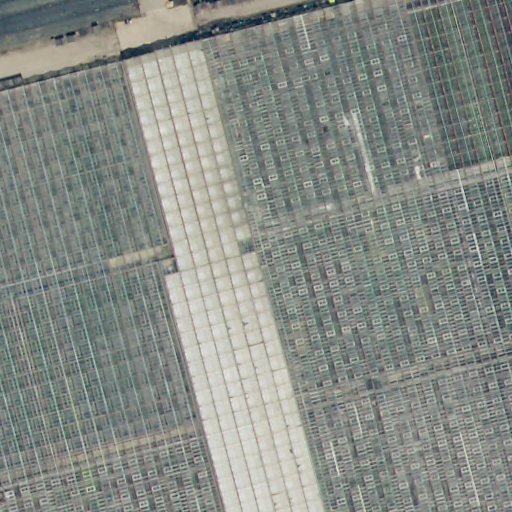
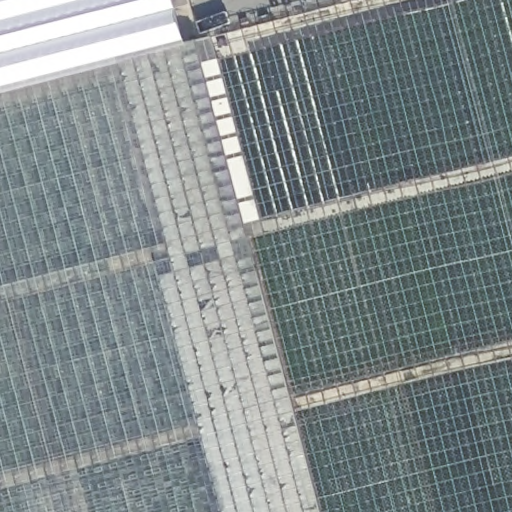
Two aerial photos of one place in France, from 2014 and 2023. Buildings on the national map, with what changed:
new [(181,41),(0,86),(0,0),(171,0),(181,41)]
unchanged [(512,512),(0,512),(0,86),(346,0),(512,0),(512,512)]

